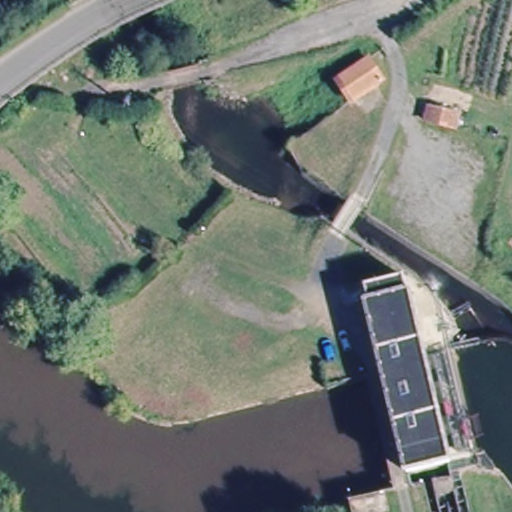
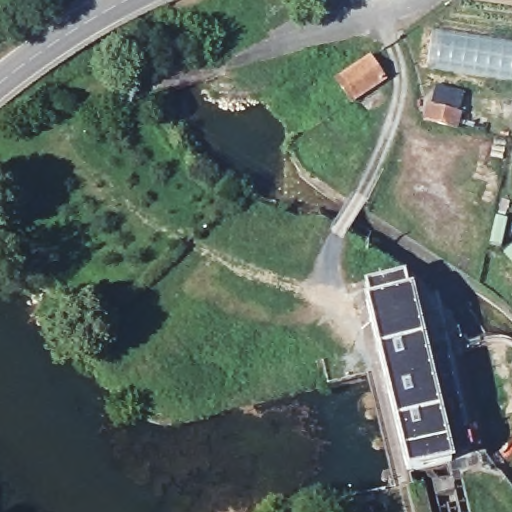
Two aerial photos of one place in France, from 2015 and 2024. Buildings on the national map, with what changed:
new [(431,27),(512,38),(512,80),(425,67),(431,27)]
unchanged [(351,97),(336,75),(368,54),(383,75),(351,97)]
unchanged [(456,125),(425,115),(429,101),(459,110),(456,125)]
demolished [(430,164),(422,184),(398,174),(406,154),(430,164)]
new [(512,245),(512,263),(502,254),(512,245)]
unchanged [(407,291),(409,291),(451,462),(407,472),(367,300),(364,285),(403,275),(407,291)]

